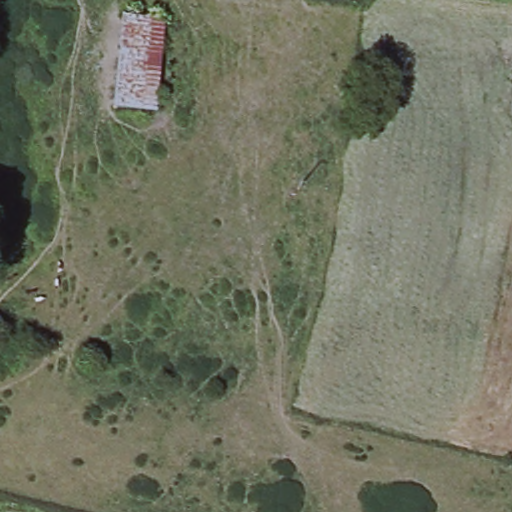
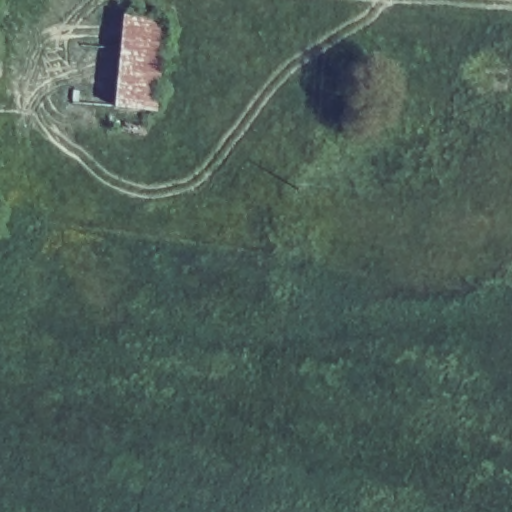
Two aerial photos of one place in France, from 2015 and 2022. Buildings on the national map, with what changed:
unchanged [(110,9),(162,9),(152,111),(105,108),(110,9)]

